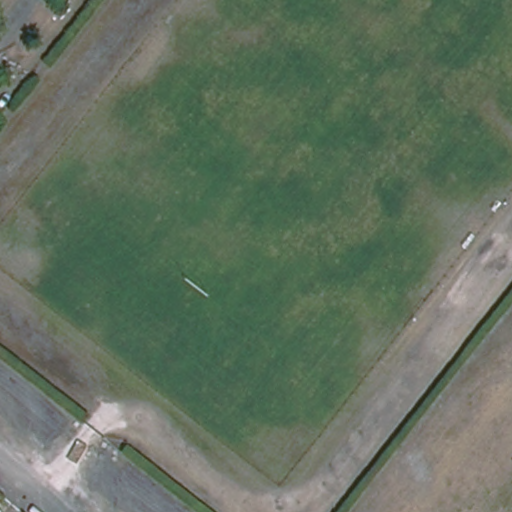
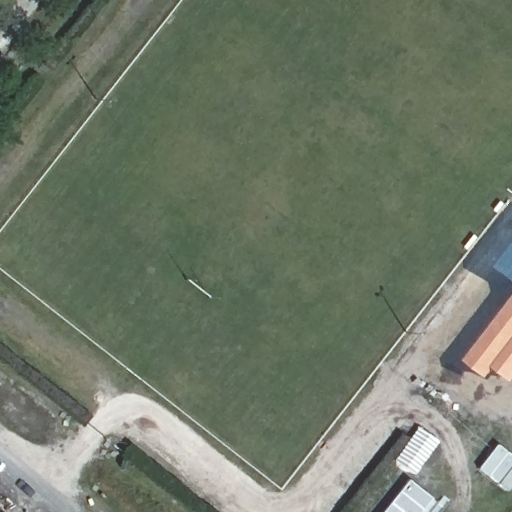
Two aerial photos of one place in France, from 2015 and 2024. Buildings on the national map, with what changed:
new [(512,255),(512,277),(502,268),(512,255)]
new [(512,381),(497,370),(489,379),(467,360),(512,301),(512,381)]
new [(431,498),(420,512),(382,512),(408,479),(431,498)]

